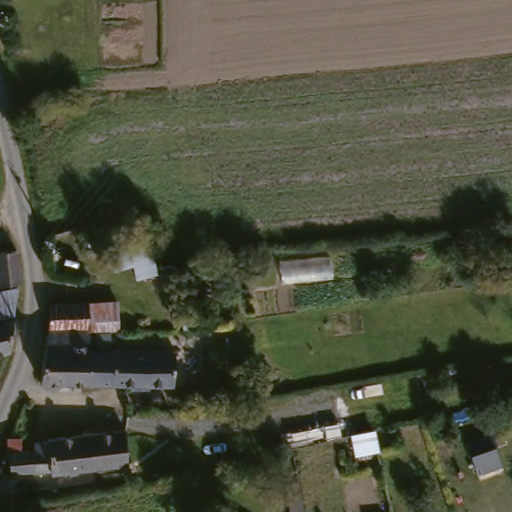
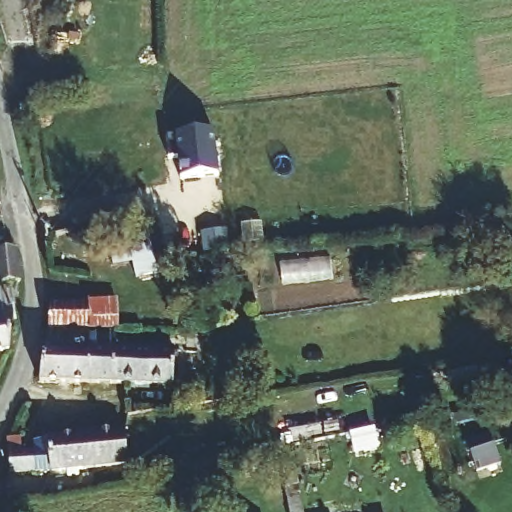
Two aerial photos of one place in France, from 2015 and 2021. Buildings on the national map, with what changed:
new [(213,132),(218,177),(181,181),(178,159),(168,160),(166,138),(213,132)]
unchanged [(4,250),(22,246),(26,278),(4,283),(1,266),(0,266),(0,246),(3,245),(4,250)]
unchanged [(15,340),(14,347),(0,350),(0,292),(24,287),(15,340)]
unchanged [(90,304),(118,304),(118,332),(90,332),(89,347),(93,347),(91,380),(93,381),(45,378),(57,301),(90,304)]
unchanged [(176,350),(173,386),(93,381),(91,380),(93,347),(176,350)]
unchanged [(14,448),(15,448),(34,447),(40,446),(39,438),(125,432),(128,466),(51,472),(50,466),(36,467),(14,469),(14,448)]
unchanged [(300,484),(305,512),(290,512),(285,486),(300,484)]

